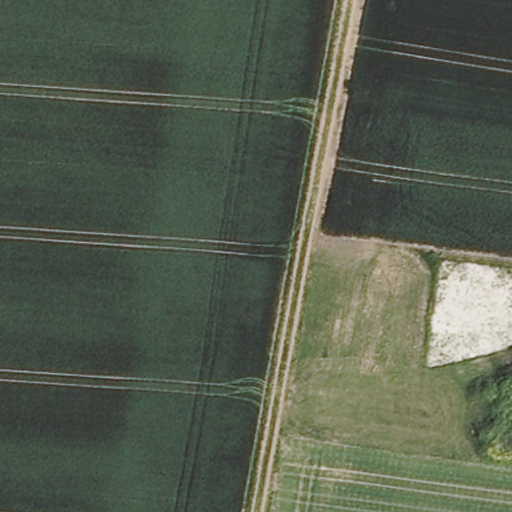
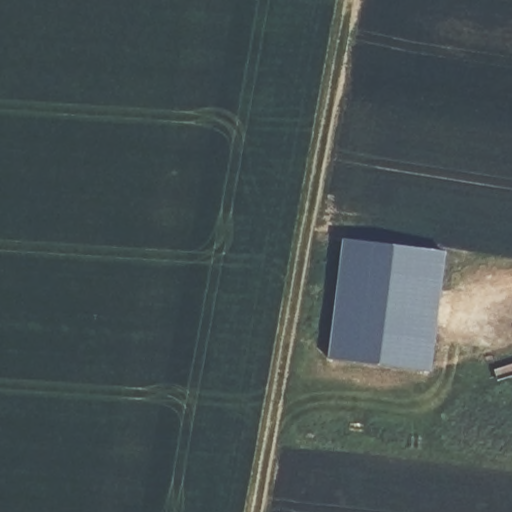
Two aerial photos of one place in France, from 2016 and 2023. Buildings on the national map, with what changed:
new [(346,241),(449,255),(432,375),(330,360),(346,241)]

